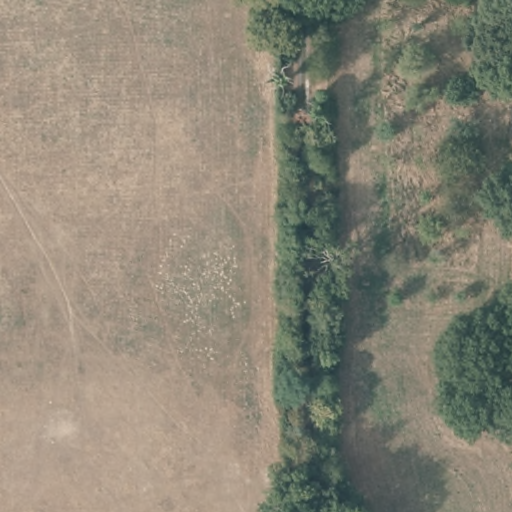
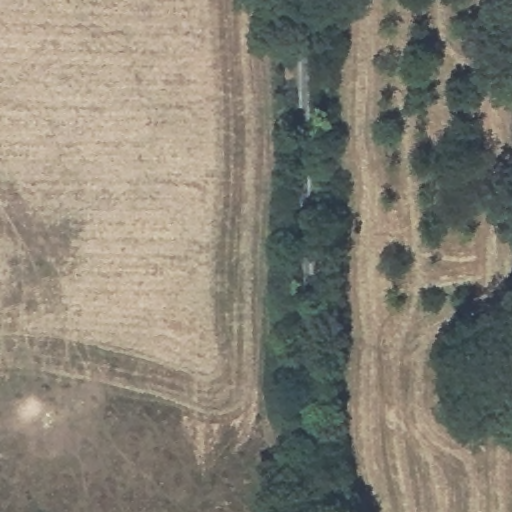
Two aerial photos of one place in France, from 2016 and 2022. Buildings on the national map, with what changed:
unchanged [(511,107),(512,107),(512,140),(511,139),(511,107)]

